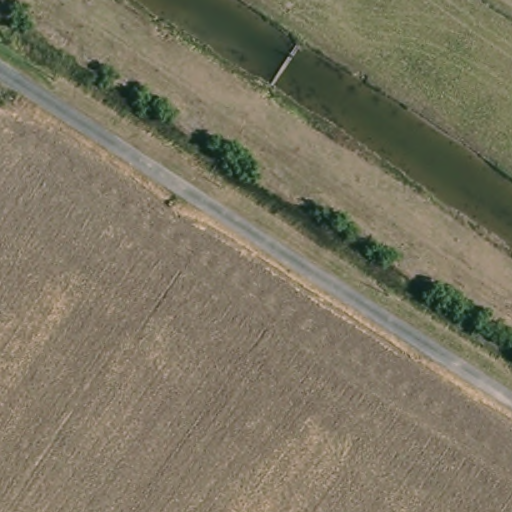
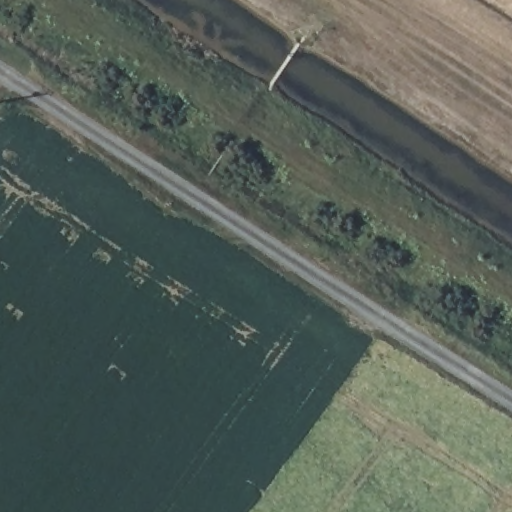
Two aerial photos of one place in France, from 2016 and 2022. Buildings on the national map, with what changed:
[]

